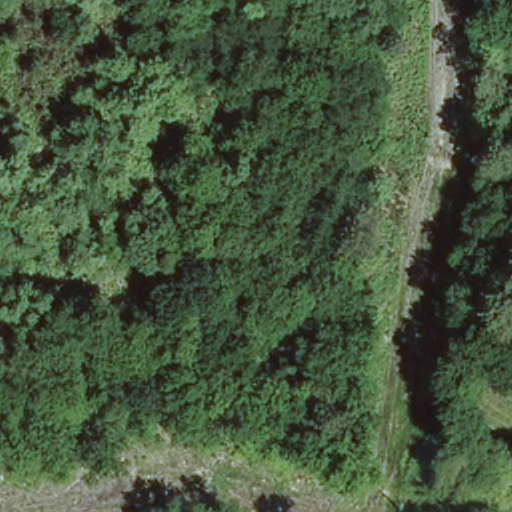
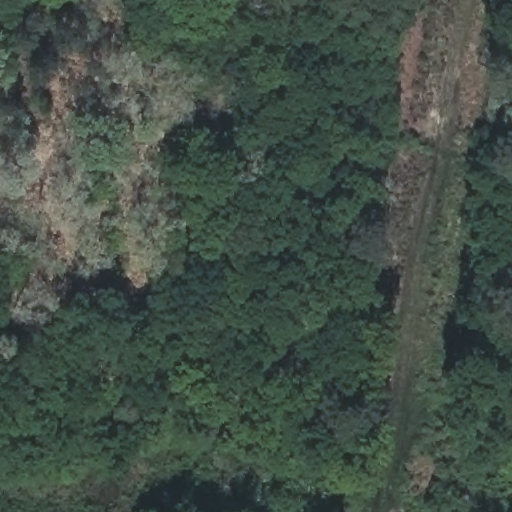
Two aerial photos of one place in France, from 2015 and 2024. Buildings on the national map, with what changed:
[]

